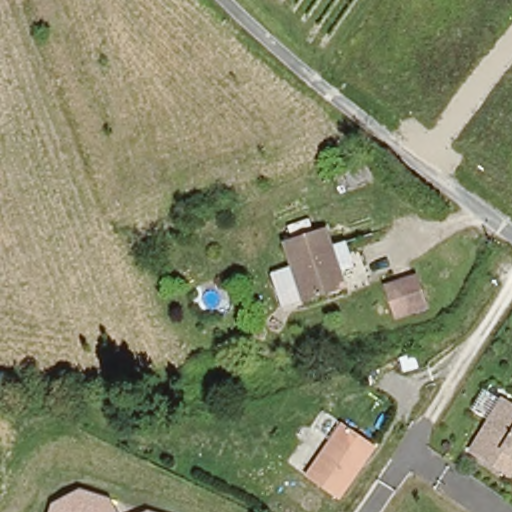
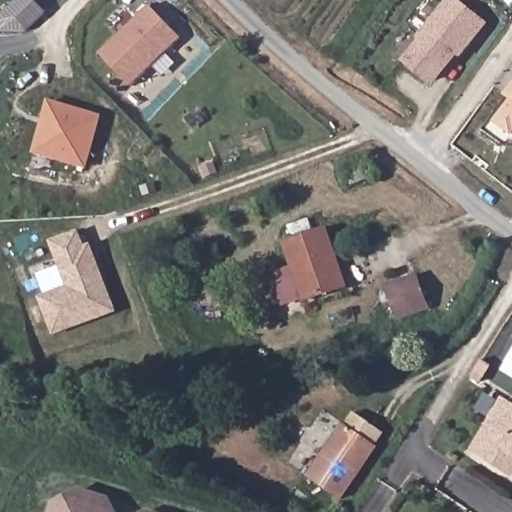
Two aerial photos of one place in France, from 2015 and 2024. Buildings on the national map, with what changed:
new [(421,41),(418,38),(448,0),(480,25),(465,42),(462,40),(429,82),(404,62),(421,41)]
new [(148,6),(179,38),(129,86),(98,54),(148,6)]
new [(507,95),(512,89),(512,99),(507,95)]
new [(47,102),(97,117),(82,167),(33,151),(47,102)]
new [(497,123),(512,103),(512,133),(497,123)]
unchanged [(376,175),(351,188),(340,167),(367,153),(376,175)]
unchanged [(285,240),(327,229),(342,289),(299,300),(285,240)]
new [(79,233),(84,248),(90,246),(114,311),(52,333),(40,298),(69,287),(52,243),(79,233)]
unchanged [(423,309),(392,318),(384,286),(415,278),(423,309)]
unchanged [(502,467),(473,449),(503,399),(512,405),(512,470),(510,472),(502,467)]
unchanged [(344,422),(375,444),(339,496),(307,474),(344,422)]

